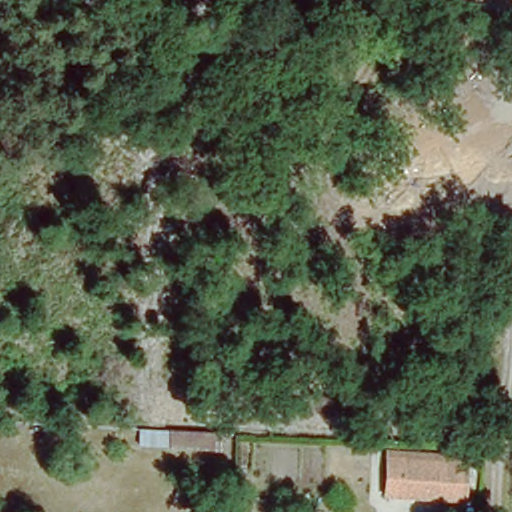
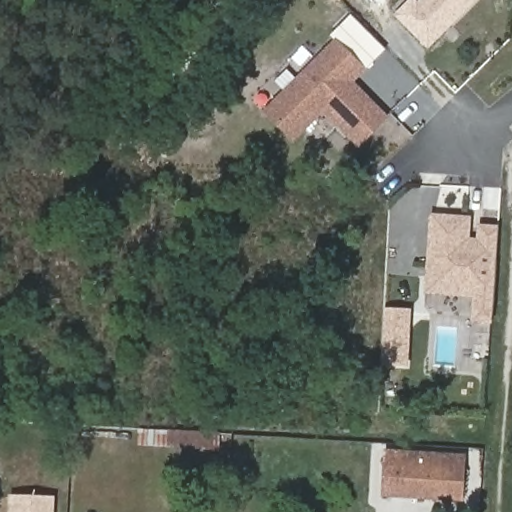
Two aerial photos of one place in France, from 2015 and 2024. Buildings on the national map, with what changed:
new [(394,16),(410,0),(416,0),(418,2),(420,0),(478,0),(428,50),(394,16)]
new [(355,82),(390,117),(358,150),(323,116),(295,145),(263,113),(335,38),(367,70),(355,82)]
new [(471,325),(472,298),(424,295),(430,215),(472,217),(471,239),(477,239),(478,226),(499,227),(493,326),(471,325)]
new [(408,367),(382,366),(385,309),(412,311),(408,367)]
unchanged [(139,430),(212,432),(212,451),(138,447),(139,430)]
unchanged [(463,457),(461,486),(386,482),(387,453),(463,457)]
new [(459,502),(385,498),(386,482),(461,486),(459,502)]
new [(55,497),(54,512),(9,512),(10,495),(55,497)]

